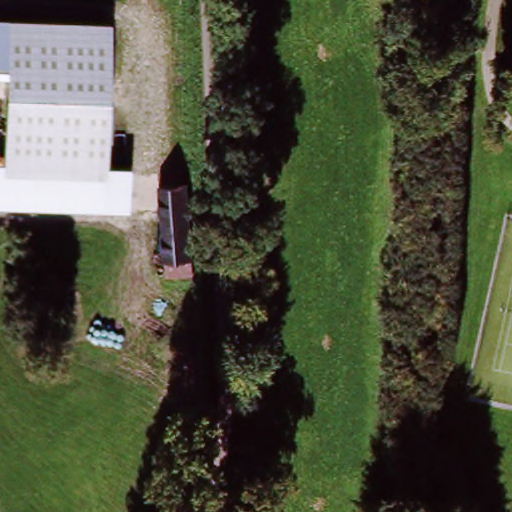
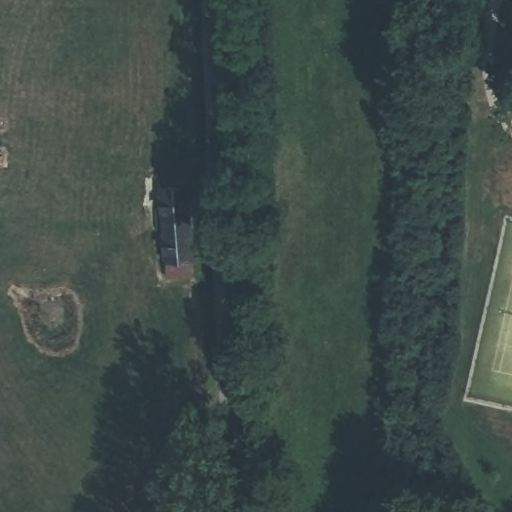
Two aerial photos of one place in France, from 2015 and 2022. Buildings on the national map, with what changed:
demolished [(112,21),(109,165),(129,164),(127,214),(0,208),(0,153),(5,71),(0,71),(0,17),(112,21)]
unchanged [(164,277),(163,260),(160,187),(187,186),(190,260),(190,276),(164,277)]

